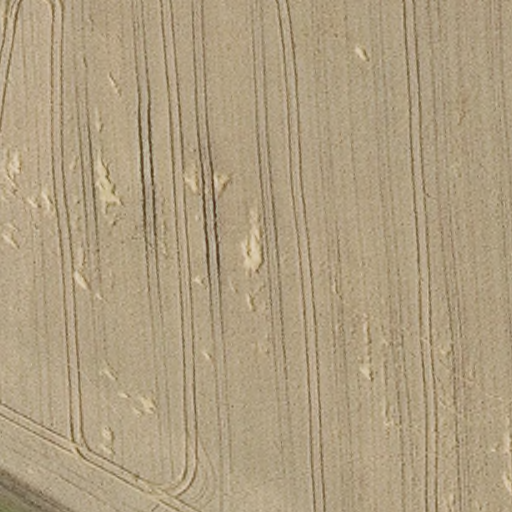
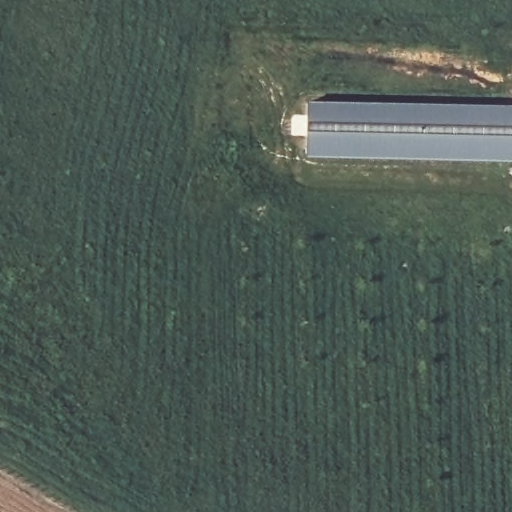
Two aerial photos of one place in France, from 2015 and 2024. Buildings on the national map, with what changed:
new [(308,101),(512,104),(512,158),(306,157),(308,101)]

